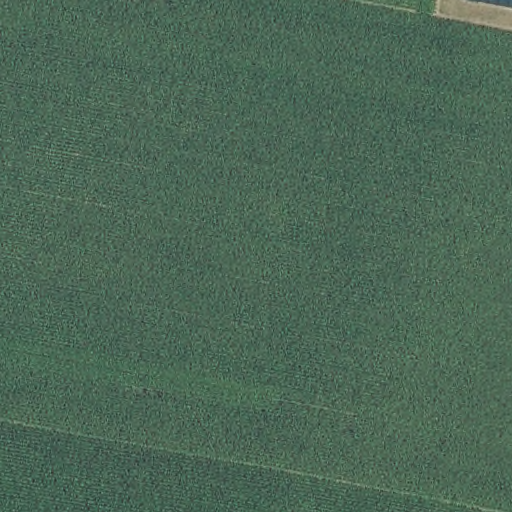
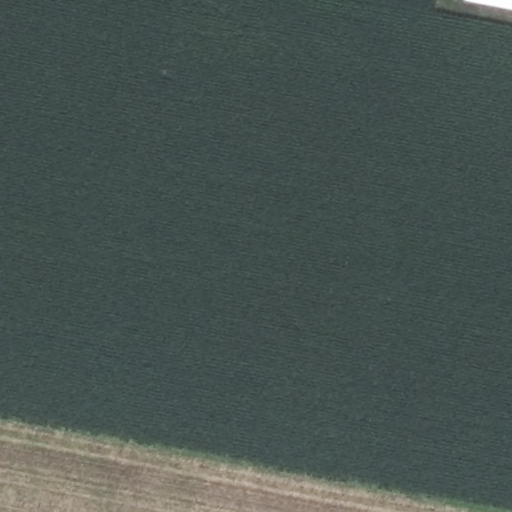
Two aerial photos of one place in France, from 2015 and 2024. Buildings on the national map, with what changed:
unchanged [(465,0),(512,0),(512,14),(464,6),(465,0)]

